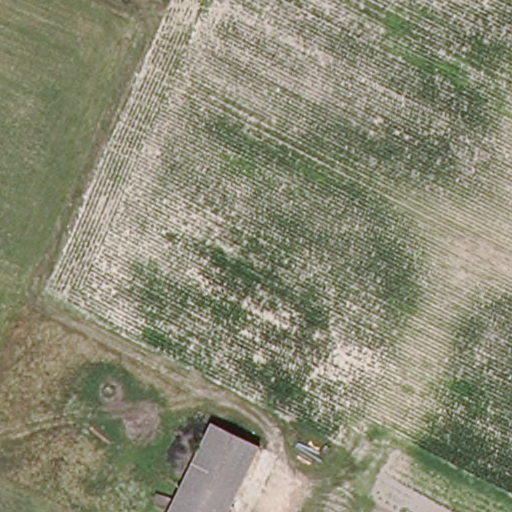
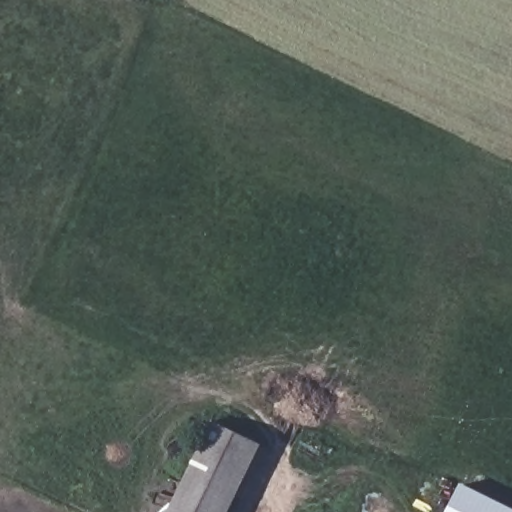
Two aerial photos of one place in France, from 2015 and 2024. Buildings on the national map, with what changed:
unchanged [(216,424),(261,444),(228,512),(172,512),(216,424)]
new [(512,510),(512,512),(449,512),(462,485),(512,510)]

